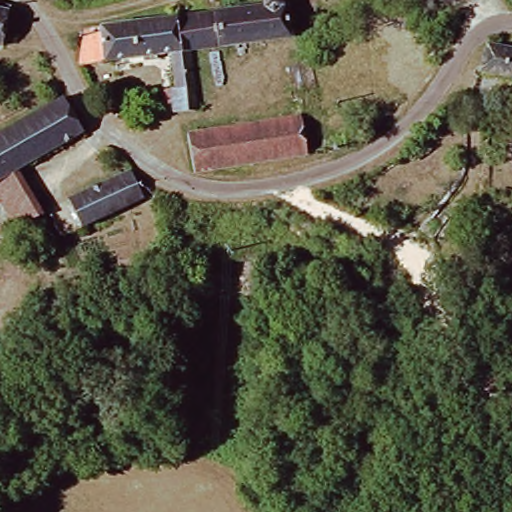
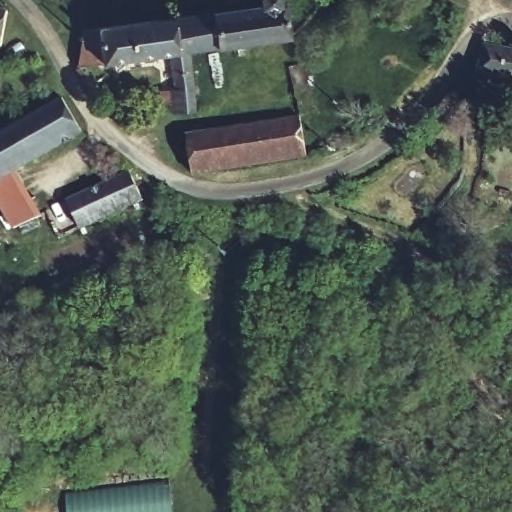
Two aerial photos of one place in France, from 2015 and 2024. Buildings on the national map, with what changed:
unchanged [(258,5),(258,0),(278,0),(278,1),(283,1),(287,35),(188,50),(179,51),(174,16),(258,5)]
unchanged [(7,16),(0,51),(0,14),(7,16)]
unchanged [(171,115),(169,108),(161,109),(158,91),(172,89),(166,53),(74,66),(84,27),(163,17),(174,16),(179,51),(188,50),(191,87),(194,112),(171,115)]
unchanged [(512,55),(512,84),(474,77),(483,49),(512,55)]
unchanged [(16,171),(0,179),(0,132),(65,98),(85,132),(16,171)]
unchanged [(184,136),(298,114),(304,157),(191,175),(184,136)]
unchanged [(38,215),(13,227),(0,203),(0,179),(16,171),(38,215)]
unchanged [(146,198),(59,238),(46,211),(133,171),(146,198)]
new [(168,480),(172,512),(67,512),(64,491),(168,480)]

